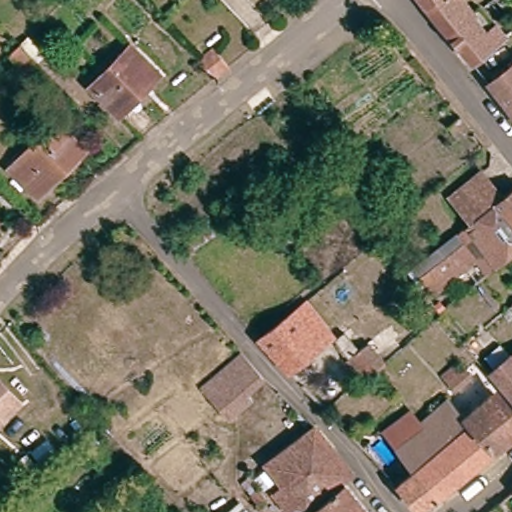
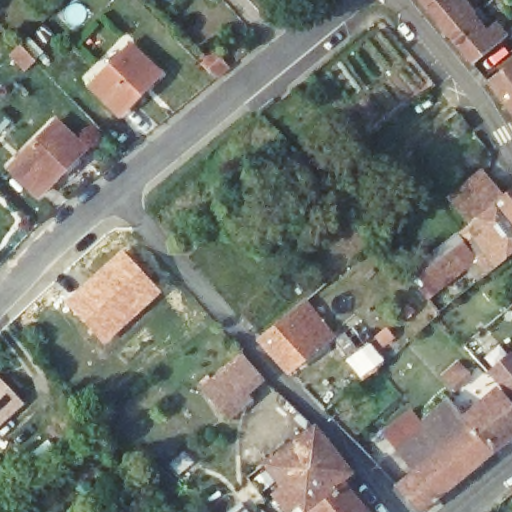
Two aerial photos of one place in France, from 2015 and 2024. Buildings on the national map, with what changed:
unchanged [(422,0),(439,0),(429,8),(422,0)]
unchanged [(472,16),(496,46),(475,64),(429,8),(439,0),(465,0),(476,13),(472,16)]
unchanged [(200,49),(215,38),(233,57),(220,68),(200,49)]
unchanged [(33,55),(24,65),(8,51),(18,41),(33,55)]
unchanged [(134,44),(164,74),(146,92),(145,90),(123,112),(95,85),(134,44)]
unchanged [(491,83),(512,66),(512,109),(491,83)]
unchanged [(452,110),(461,121),(451,130),(442,119),(452,110)]
unchanged [(56,119),(85,148),(41,192),(12,163),(56,119)]
unchanged [(453,197),(483,171),(504,197),(474,223),(453,197)]
unchanged [(480,283),(473,274),(483,266),(471,251),(458,236),(474,223),(504,197),(512,191),(512,257),(480,283)]
unchanged [(471,251),(429,285),(416,271),(458,236),(471,251)]
new [(123,249),(161,292),(104,346),(64,300),(123,249)]
unchanged [(508,299),(512,296),(512,304),(508,299)]
unchanged [(256,342),(286,317),(300,305),(328,339),(316,349),(286,373),(256,342)]
unchanged [(369,377),(359,385),(325,347),(336,339),(369,377)]
unchanged [(485,369),(512,347),(512,401),(485,369)]
unchanged [(265,379),(245,397),(251,405),(237,416),(208,382),(242,354),(265,379)]
unchanged [(455,358),(466,371),(449,384),(439,370),(455,358)]
unchanged [(4,416),(0,420),(0,381),(20,402),(4,416)]
unchanged [(459,413),(487,390),(512,420),(512,432),(491,448),(459,413)]
unchanged [(445,410),(425,426),(423,422),(394,444),(382,430),(410,407),(418,416),(438,400),(445,410)]
unchanged [(394,444),(423,422),(425,426),(445,410),(452,418),(459,413),(491,448),(435,492),(416,507),(394,481),(412,466),(394,444)]
unchanged [(338,451),(287,488),(270,467),(318,428),(338,451)]
unchanged [(345,481),(308,512),(306,512),(302,507),(295,512),(289,512),(276,496),(285,490),(287,488),(338,451),(352,469),(341,476),(345,481)]
unchanged [(348,485),(371,512),(315,512),(348,485)]
unchanged [(254,499),(262,493),(270,502),(263,508),(262,509),(254,499)]

